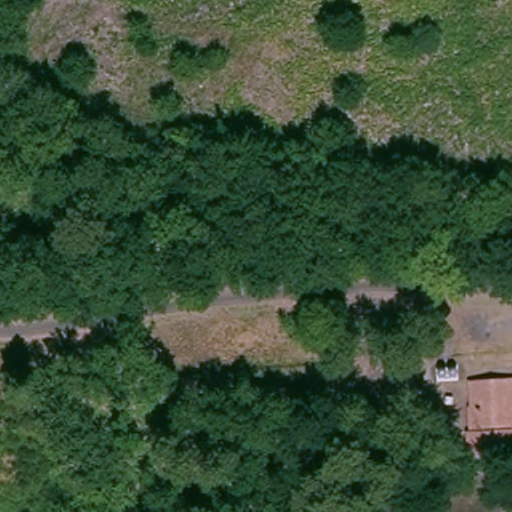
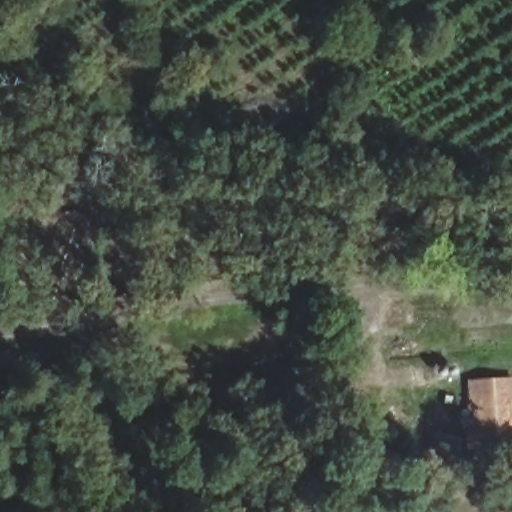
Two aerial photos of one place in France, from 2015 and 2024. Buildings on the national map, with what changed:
unchanged [(482,430),(483,415),(475,415),(475,402),(466,402),(465,381),(512,381),(512,431),(510,430),(482,430)]

